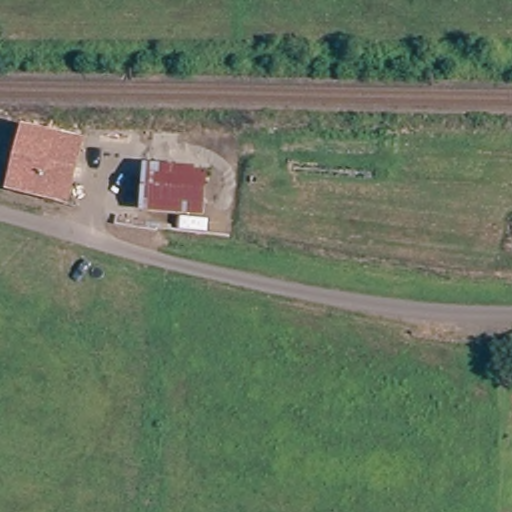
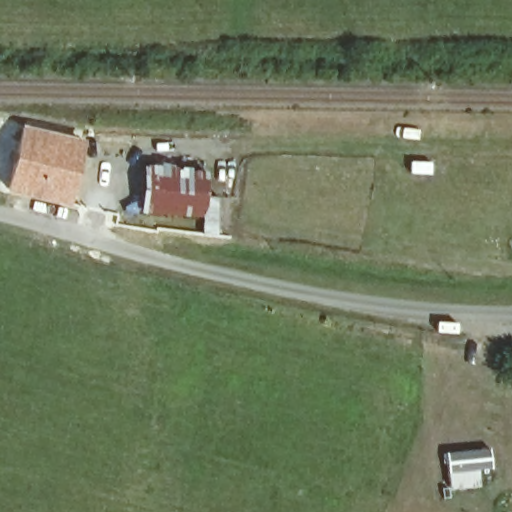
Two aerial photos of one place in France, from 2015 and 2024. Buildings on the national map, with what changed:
unchanged [(24,127),(50,131),(82,145),(65,204),(4,188),(24,127)]
unchanged [(156,160),(205,166),(199,231),(148,225),(156,160)]

